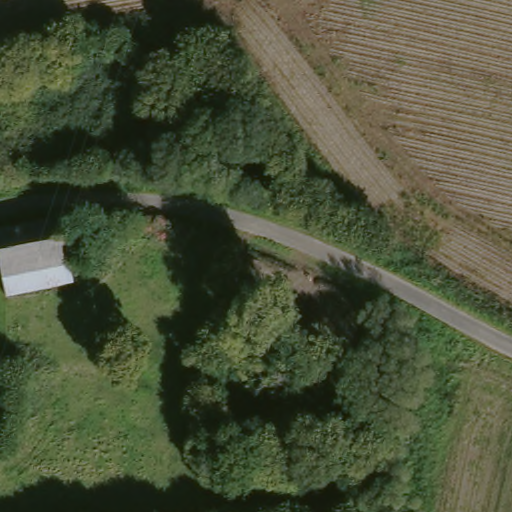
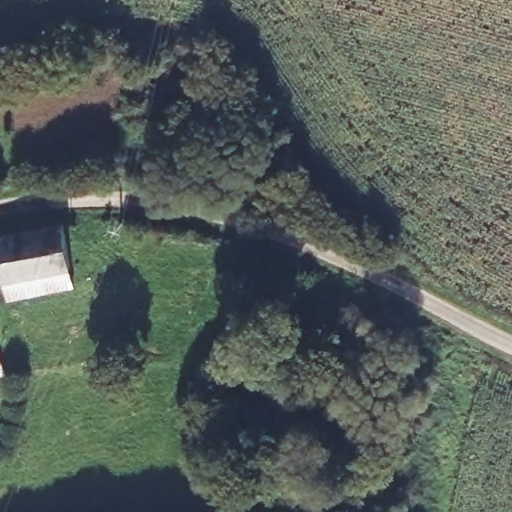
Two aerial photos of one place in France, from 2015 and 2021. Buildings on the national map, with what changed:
unchanged [(0,297),(0,246),(58,235),(67,285),(0,297)]

